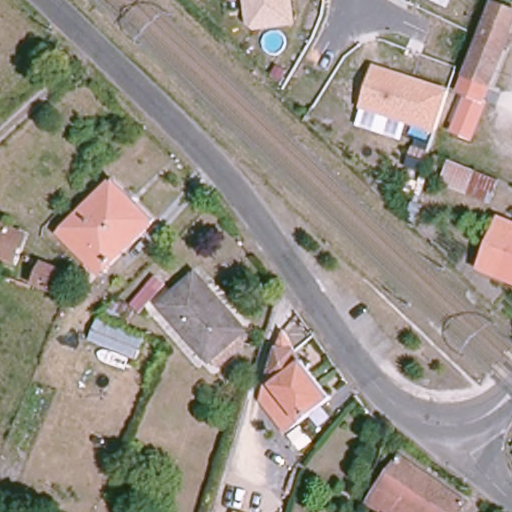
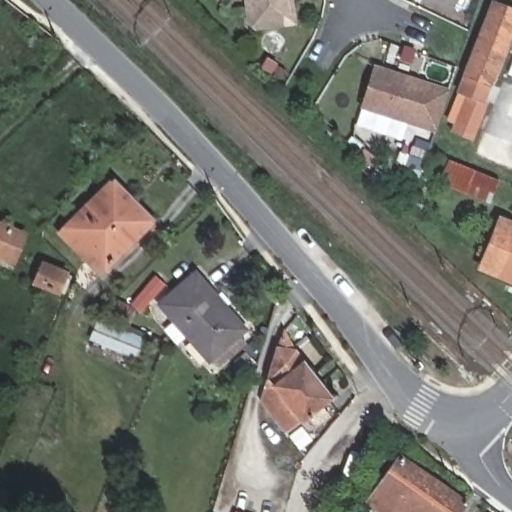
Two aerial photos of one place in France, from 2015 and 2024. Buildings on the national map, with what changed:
unchanged [(295,25),(254,30),(246,24),(243,0),(292,0),(295,25)]
unchanged [(465,74),(493,2),(512,11),(512,31),(490,85),(465,74)]
unchanged [(448,87),(433,132),(360,109),(374,64),(448,87)]
unchanged [(484,102),(487,102),(472,140),(450,131),(465,94),(460,92),(465,74),(490,85),(484,102)]
unchanged [(490,205),(467,196),(441,186),(450,162),(475,170),(500,180),(490,205)]
unchanged [(154,221),(116,260),(99,276),(58,234),(112,179),(154,221)]
unchanged [(501,220),(512,224),(512,281),(481,268),(501,220)]
unchanged [(0,256),(0,224),(25,234),(14,262),(0,256)]
unchanged [(66,273),(58,293),(36,283),(44,264),(66,273)]
unchanged [(195,274),(245,331),(210,362),(160,305),(195,274)]
unchanged [(80,347),(85,333),(87,335),(95,317),(153,342),(146,360),(117,347),(112,360),(80,347)]
unchanged [(285,433),(263,404),(260,401),(277,347),(278,347),(293,350),(332,398),(301,423),(300,422),(285,433)]
unchanged [(400,456),(468,503),(462,512),(385,512),(369,501),(373,496),(400,456)]

